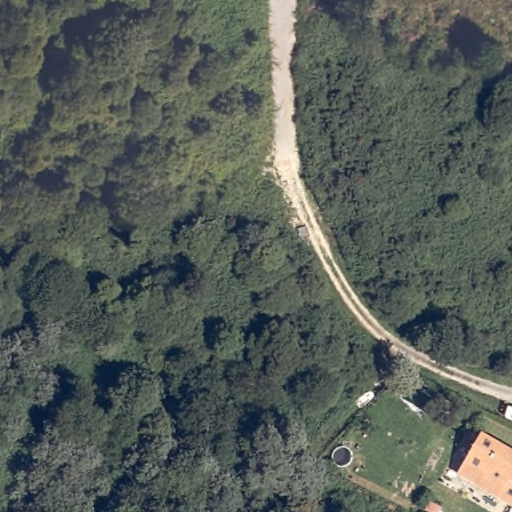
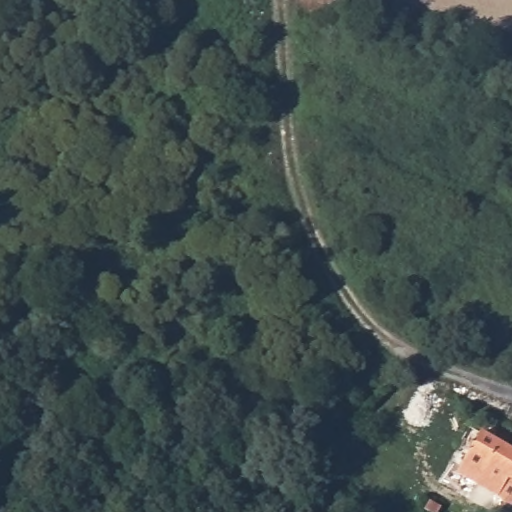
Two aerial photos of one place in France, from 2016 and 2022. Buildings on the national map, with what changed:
unchanged [(492,483),(475,473),(494,437),(512,447),(512,494),(492,483)]

